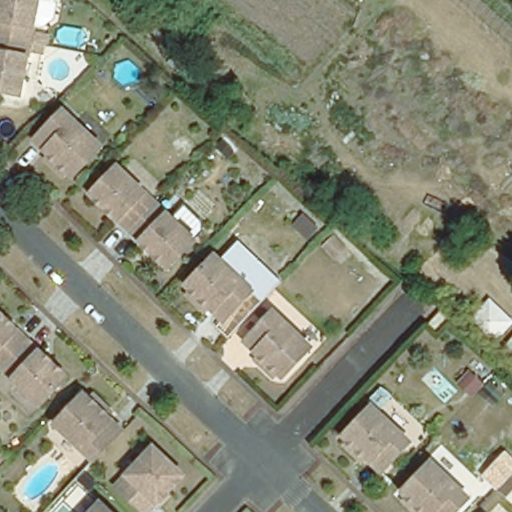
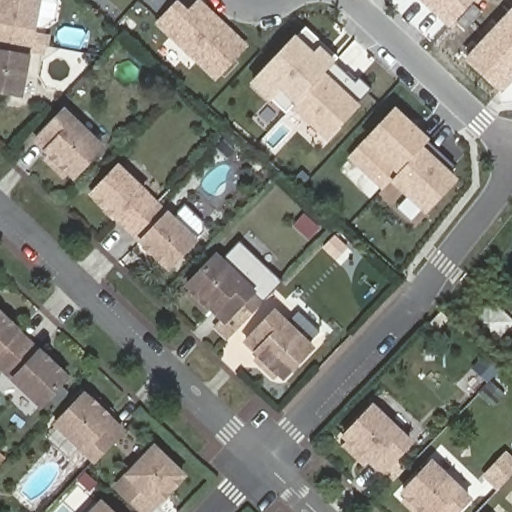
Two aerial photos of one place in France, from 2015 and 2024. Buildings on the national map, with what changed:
unchanged [(26,42),(0,38),(0,0),(34,0),(26,42)]
new [(154,24),(176,0),(178,0),(188,9),(197,0),(200,0),(249,46),(215,82),(154,24)]
new [(448,29),(418,0),(475,0),(448,29)]
new [(501,93),(464,59),(512,9),(512,81),(501,93)]
new [(359,103),(361,105),(326,142),(290,108),(285,114),(270,101),(249,83),(295,34),(304,25),(339,56),(333,62),(354,82),(359,78),(371,90),(359,103)]
unchanged [(31,32),(45,35),(43,46),(37,44),(35,54),(24,52),(16,95),(0,92),(0,38),(26,42),(29,43),(31,32)]
new [(429,138),(423,145),(459,178),(425,215),(389,181),(381,190),(347,158),(394,106),(429,138)]
unchanged [(101,147),(74,176),(36,140),(64,111),(101,147)]
unchanged [(92,194),(118,166),(156,203),(130,230),(92,194)]
unchanged [(195,240),(169,267),(130,230),(156,203),(195,240)]
unchanged [(338,255),(327,267),(316,258),(327,245),(338,255)]
unchanged [(253,291),(224,320),(187,285),(215,255),(253,291)]
unchanged [(269,312),(307,348),(279,377),(241,341),(269,312)]
unchanged [(0,314),(29,340),(9,360),(0,370),(0,314)]
unchanged [(429,318),(433,314),(434,314),(446,324),(434,337),(422,326),(429,318)]
unchanged [(66,376),(38,406),(0,370),(9,360),(29,340),(66,376)]
unchanged [(56,423),(84,394),(122,430),(94,459),(56,423)]
unchanged [(404,445),(376,475),(338,439),(366,409),(404,445)]
unchanged [(184,474),(147,512),(144,512),(117,485),(154,446),(184,474)]
new [(503,453),(512,462),(512,469),(496,486),(484,474),(503,453)]
unchanged [(451,512),(419,512),(399,492),(427,463),(464,499),(451,512)]
unchanged [(111,512),(92,512),(101,502),(111,512)]

